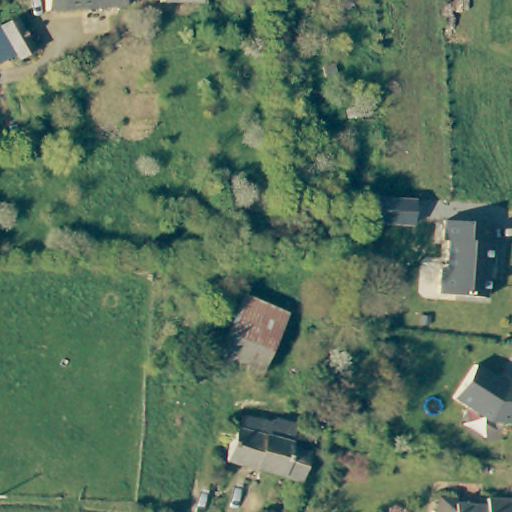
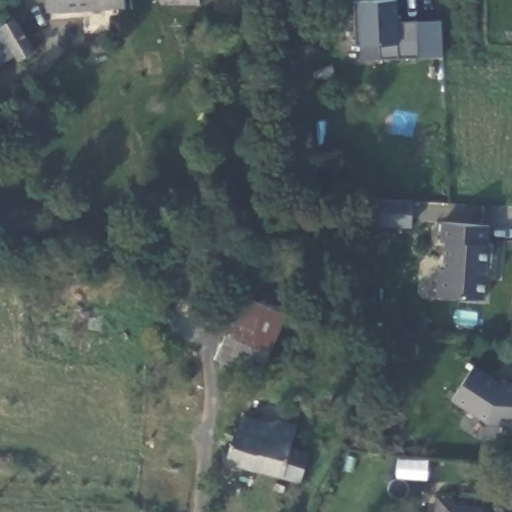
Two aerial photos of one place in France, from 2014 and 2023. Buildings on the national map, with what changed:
unchanged [(80,9),(46,10),(46,0),(80,0),(80,9)]
unchanged [(80,0),(125,0),(125,6),(113,7),(80,9),(80,0)]
unchanged [(210,1),(168,2),(168,0),(210,0),(210,1)]
new [(378,42),(357,43),(357,0),(400,0),(400,21),(442,19),(444,55),(381,57),(378,42)]
unchanged [(0,24),(12,18),(30,50),(16,56),(0,32),(0,24)]
new [(412,227),(367,224),(369,196),(414,198),(412,227)]
unchanged [(485,244),(490,245),(488,267),(483,267),(481,299),(435,297),(436,272),(441,272),(442,243),(437,243),(438,223),(485,226),(485,244)]
unchanged [(244,295),(286,316),(280,329),(267,354),(225,332),(238,306),(244,295)]
unchanged [(267,354),(256,376),(214,357),(225,332),(267,354)]
unchanged [(512,383),(512,422),(484,420),(447,398),(468,364),(496,382),(512,383)]
unchanged [(236,431),(241,415),(268,424),(265,437),(292,445),(291,448),(310,454),(300,481),(225,458),(234,430),(236,431)]
unchanged [(455,500),(455,504),(484,507),(485,500),(512,502),(512,512),(435,512),(436,498),(455,500)]

